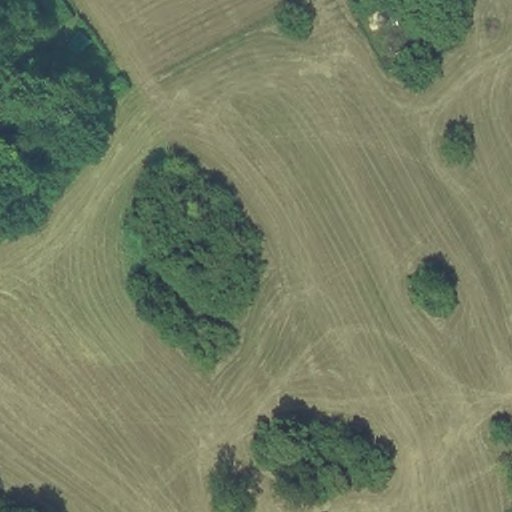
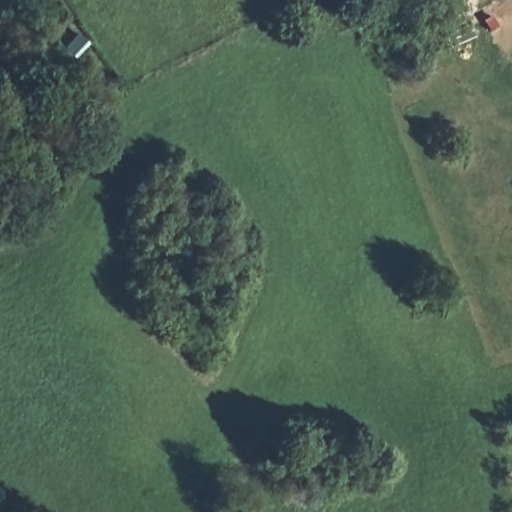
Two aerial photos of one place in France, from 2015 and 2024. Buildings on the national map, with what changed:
unchanged [(0,64),(0,54),(4,57),(0,64)]

